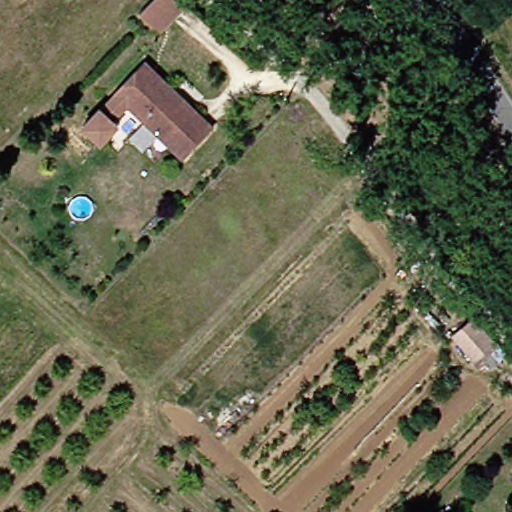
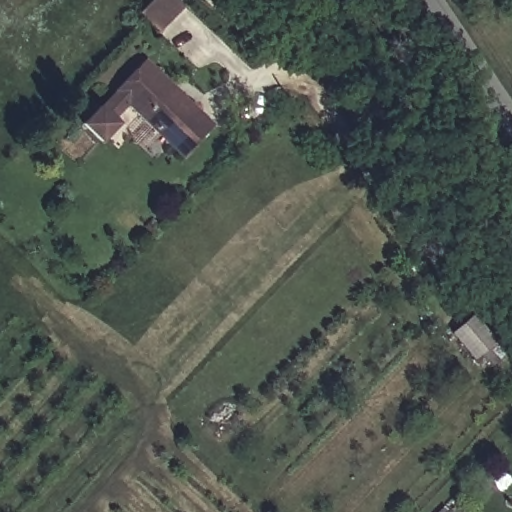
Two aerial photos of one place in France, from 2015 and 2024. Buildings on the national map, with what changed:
unchanged [(156,34),(137,14),(151,0),(168,0),(180,12),(156,34)]
unchanged [(155,137),(126,106),(108,123),(112,128),(98,142),(80,124),(99,106),(100,107),(114,93),(113,92),(145,62),(211,130),(186,154),(179,161),(155,137)]
unchanged [(469,324),(494,350),(477,367),(452,341),(469,324)]
unchanged [(430,510),(432,512),(429,512),(430,510)]

